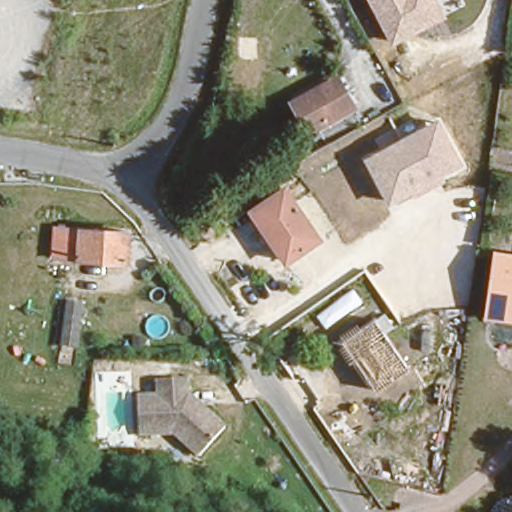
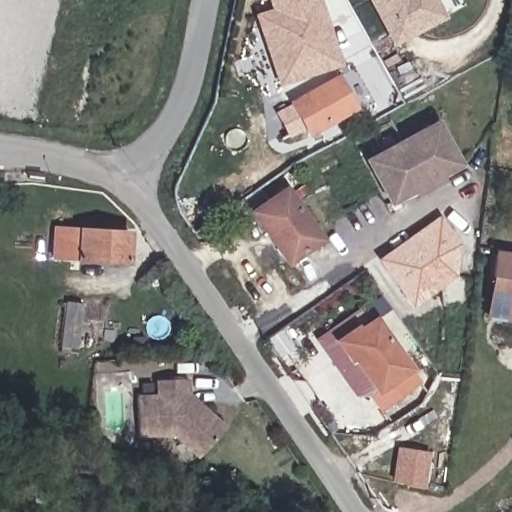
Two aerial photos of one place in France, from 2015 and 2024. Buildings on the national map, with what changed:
new [(254,15),(270,10),(266,0),(321,0),(343,65),(276,86),(254,15)]
unchanged [(448,16),(391,46),(367,0),(439,0),(448,16)]
unchanged [(308,130),(293,96),(337,75),(352,109),(308,130)]
unchanged [(445,180),(414,197),(411,192),(388,205),(364,158),(439,120),(464,165),(443,176),(445,180)]
unchanged [(246,206),(281,182),(314,233),(279,257),(246,206)]
new [(377,258),(440,215),(457,245),(457,279),(412,304),(377,258)]
unchanged [(52,254),(56,221),(128,225),(126,259),(52,254)]
unchanged [(512,249),(512,321),(479,315),(490,245),(512,249)]
demolished [(76,330),(80,284),(98,285),(93,331),(76,330)]
new [(65,348),(70,303),(88,305),(82,350),(65,348)]
unchanged [(376,387),(342,335),(376,311),(410,362),(376,387)]
unchanged [(192,406),(201,405),(222,425),(201,452),(173,430),(136,428),(137,390),(158,390),(158,375),(186,376),(185,400),(192,406)]
new [(397,446),(431,452),(425,488),(391,482),(397,446)]

